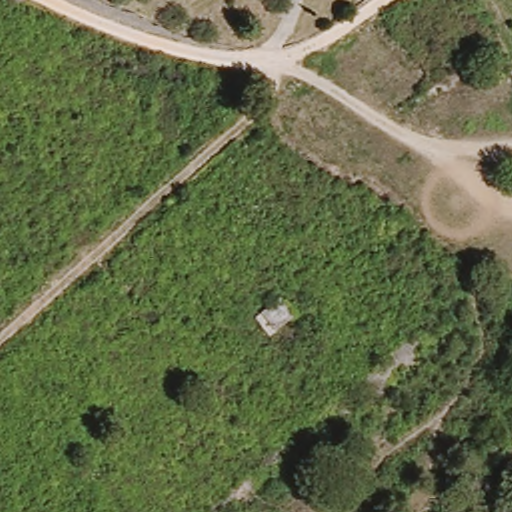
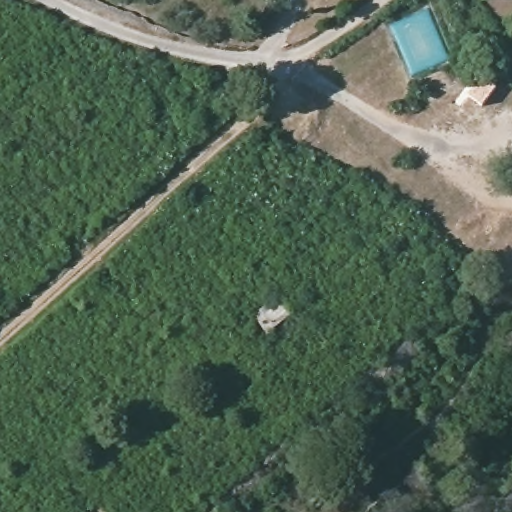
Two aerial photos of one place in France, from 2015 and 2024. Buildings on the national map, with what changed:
unchanged [(252,316),(269,302),(282,319),(266,332),(252,316)]

